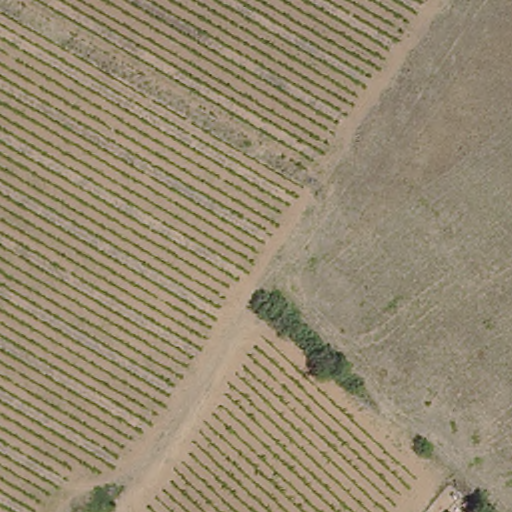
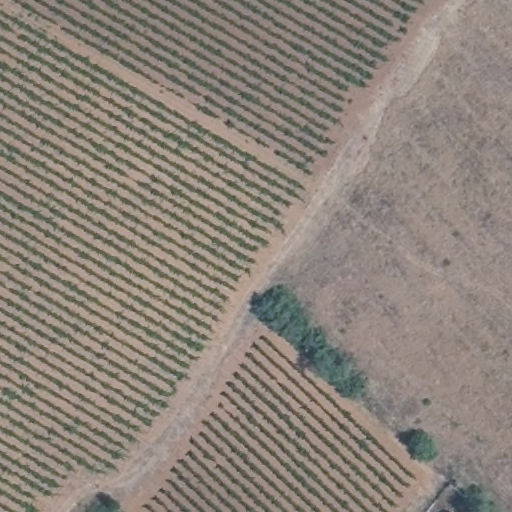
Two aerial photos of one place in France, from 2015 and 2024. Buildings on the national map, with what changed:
unchanged [(469,512),(447,512),(455,500),(469,512)]

